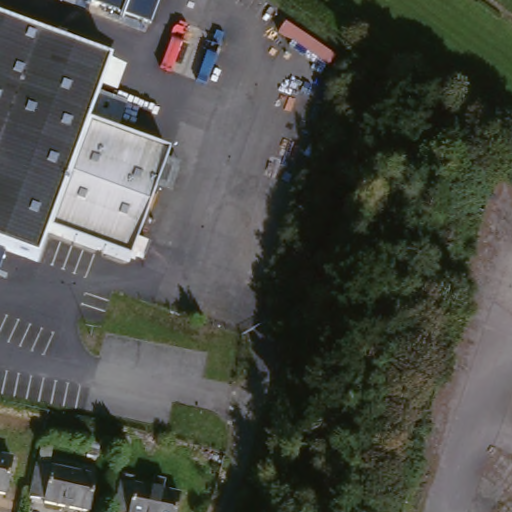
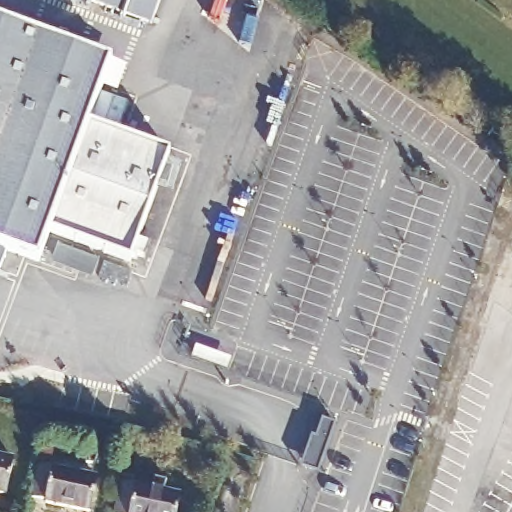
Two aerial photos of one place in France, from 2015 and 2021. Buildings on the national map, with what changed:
unchanged [(73,0),(161,0),(151,28),(73,0)]
unchanged [(115,68),(94,130),(55,238),(45,266),(0,250),(0,26),(32,38),(115,68)]
unchanged [(140,258),(137,266),(55,238),(94,130),(175,157),(145,245),(155,249),(151,262),(140,258)]
unchanged [(4,494),(0,493),(0,456),(11,458),(4,494)]
unchanged [(96,480),(89,512),(44,503),(30,496),(37,467),(96,480)]
unchanged [(132,486),(131,492),(177,502),(174,512),(114,512),(121,483),(132,486)]

